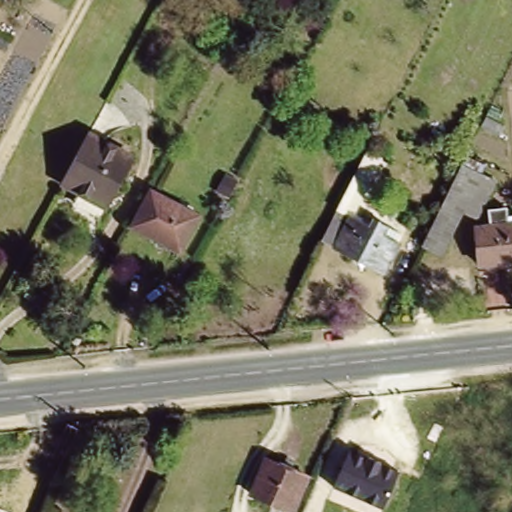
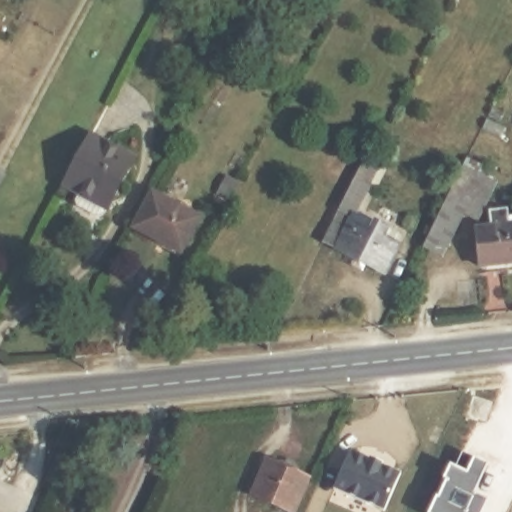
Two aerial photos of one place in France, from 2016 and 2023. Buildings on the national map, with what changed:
unchanged [(217,2),(218,0),(248,0),(240,15),(217,2)]
unchanged [(83,191),(64,181),(90,132),(136,156),(114,199),(110,205),(83,191)]
unchanged [(418,243),(420,244),(405,273),(341,241),(386,154),(400,160),(370,219),(391,230),(395,222),(410,230),(421,235),(418,243)]
unchanged [(429,216),(438,220),(467,161),(502,178),(483,215),(469,208),(449,249),(428,239),(433,230),(424,226),(429,216)]
unchanged [(159,187),(206,213),(187,249),(140,223),(159,187)]
unchanged [(482,224),(498,222),(496,205),(512,202),(512,260),(486,263),(482,224)]
unchanged [(401,471),(381,510),(335,485),(355,446),(401,471)]
new [(491,500),(485,512),(430,512),(451,465),(457,467),(463,452),(474,457),(490,465),(476,493),(491,500)]
unchanged [(308,473),(292,509),(251,490),(267,455),(308,473)]

